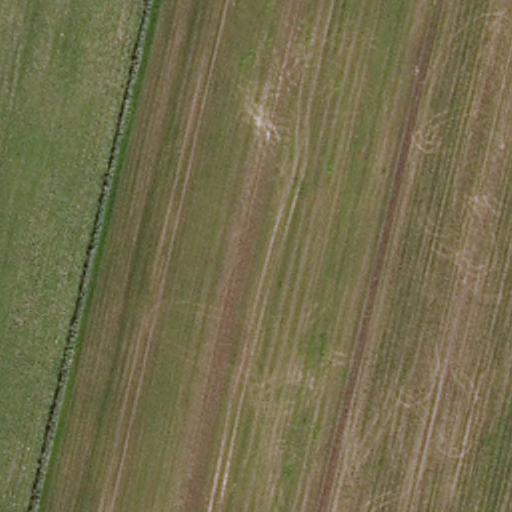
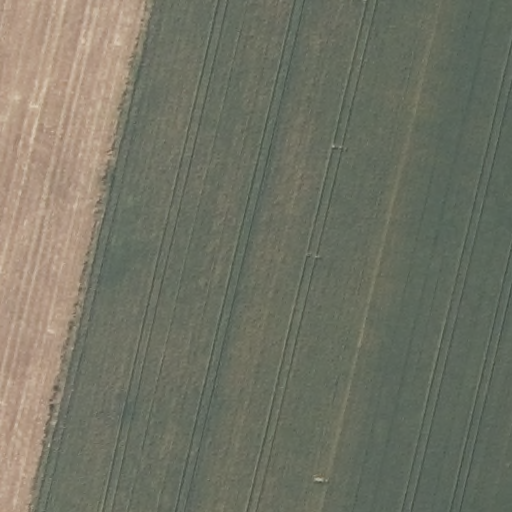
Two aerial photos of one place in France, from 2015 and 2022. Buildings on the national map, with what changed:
[]

